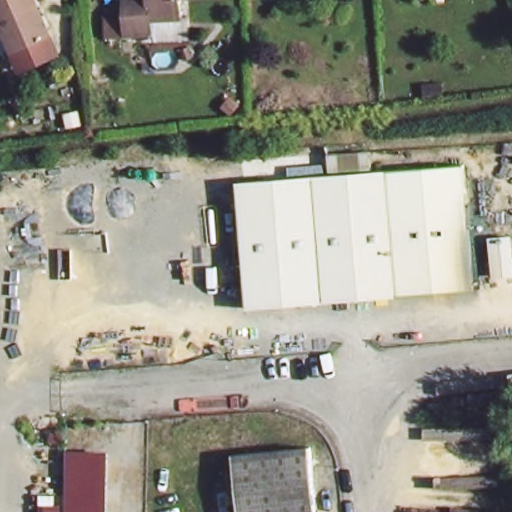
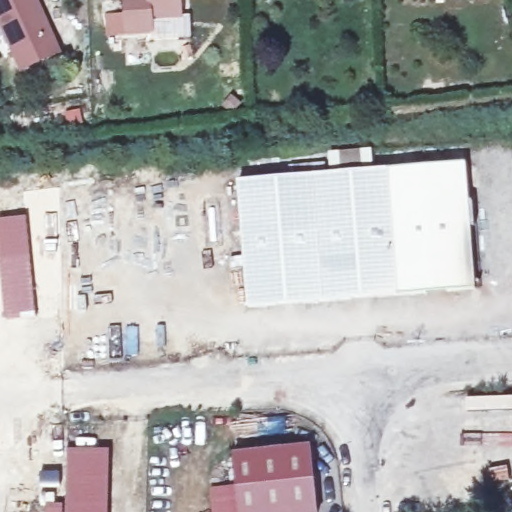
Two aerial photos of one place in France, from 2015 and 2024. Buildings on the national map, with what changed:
unchanged [(54,36),(16,54),(0,27),(0,0),(34,0),(54,36)]
unchanged [(126,0),(179,0),(180,14),(150,17),(151,36),(128,38),(126,0)]
unchanged [(349,171),(374,168),(463,156),(480,278),(360,295),(261,310),(244,186),(349,171)]
new [(26,214),(35,314),(4,318),(0,271),(0,218),(26,214)]
demolished [(512,259),(512,272),(493,273),(488,231),(510,229),(512,259)]
unchanged [(318,511),(307,512),(243,512),(237,451),(314,443),(318,511)]
unchanged [(105,512),(65,512),(66,473),(67,445),(107,446),(105,512)]

